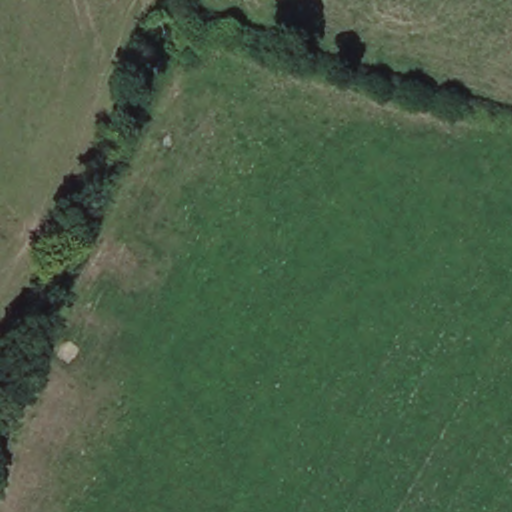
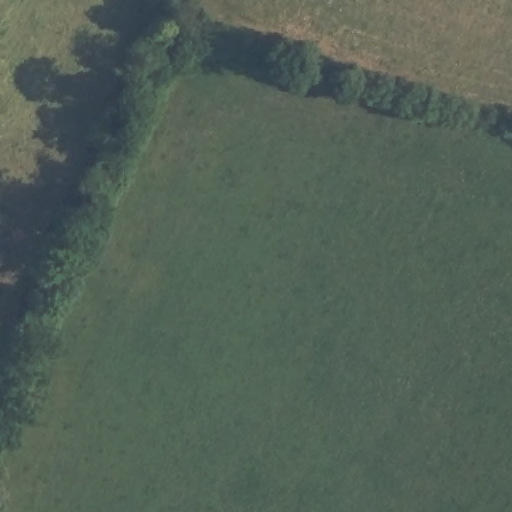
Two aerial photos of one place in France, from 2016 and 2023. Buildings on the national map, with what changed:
unchanged [(159,9),(160,0),(168,0),(166,8),(159,9)]

